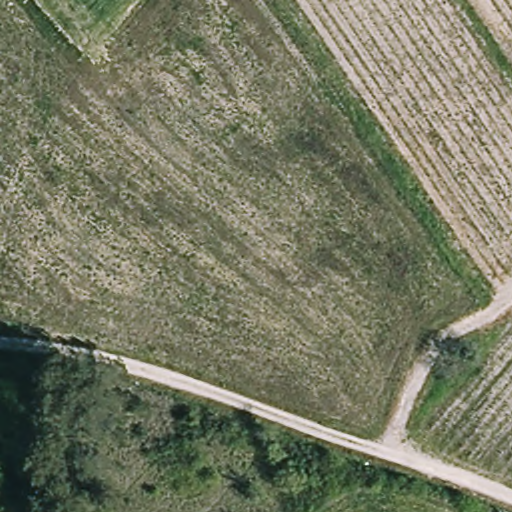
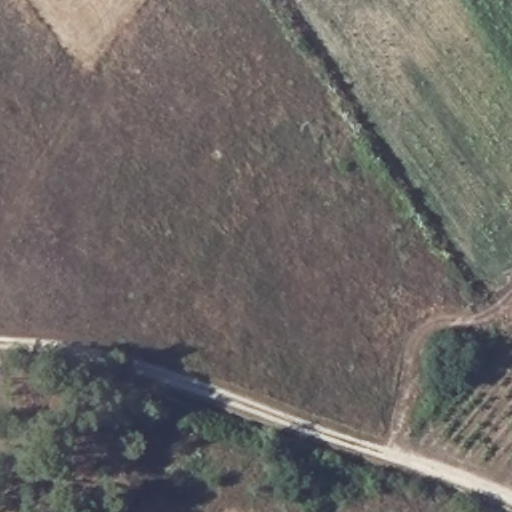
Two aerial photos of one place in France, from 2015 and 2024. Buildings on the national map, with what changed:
[]

